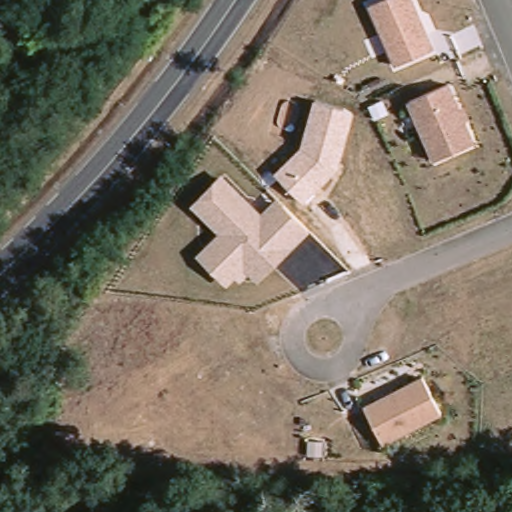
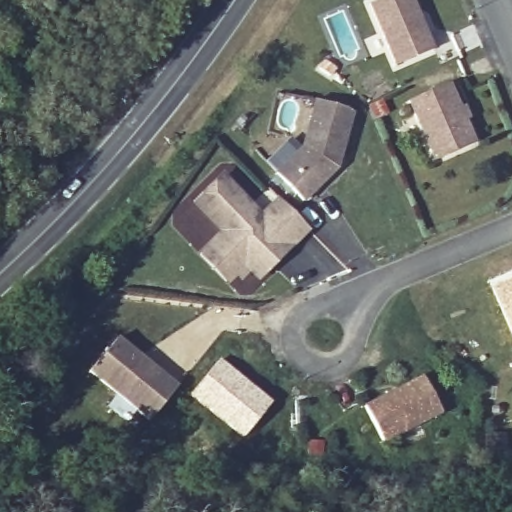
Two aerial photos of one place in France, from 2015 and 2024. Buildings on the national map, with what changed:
unchanged [(380,0),(416,0),(436,49),(395,66),(370,4),(380,0)]
unchanged [(436,155),(411,97),(448,80),(475,139),(436,155)]
unchanged [(353,112),(338,170),(302,203),(275,174),(301,148),(315,100),(353,112)]
unchanged [(192,202),(224,170),(264,211),(279,196),(312,230),(260,281),(251,272),(242,282),(236,276),(227,285),(197,254),(220,232),(192,202)]
new [(512,279),(512,335),(491,288),(512,279)]
new [(88,372),(117,337),(177,385),(147,420),(88,372)]
new [(217,360),(271,402),(241,440),(187,395),(217,360)]
unchanged [(392,440),(373,405),(430,375),(449,410),(392,440)]

